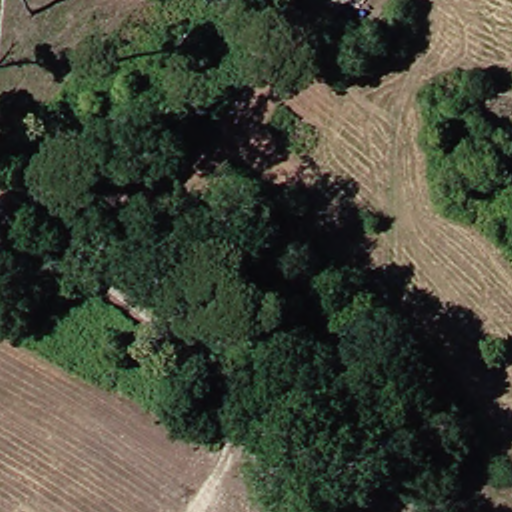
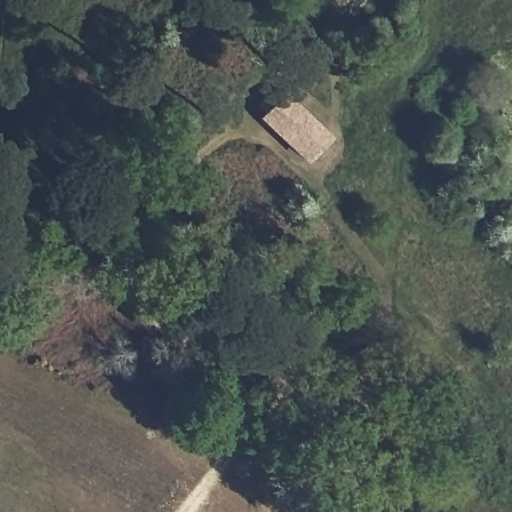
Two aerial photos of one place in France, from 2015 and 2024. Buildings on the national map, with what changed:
new [(282,91),(330,138),(304,164),(255,118),(282,91)]

